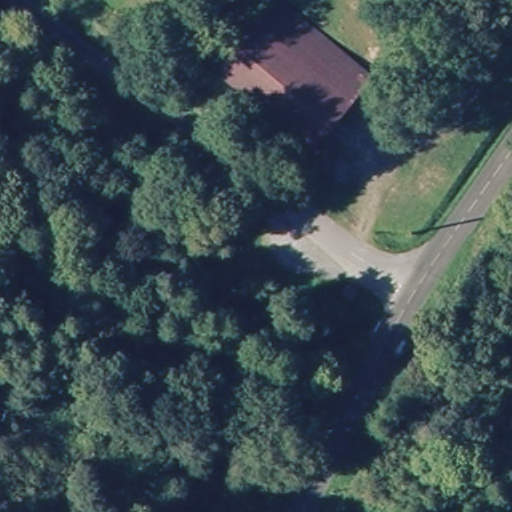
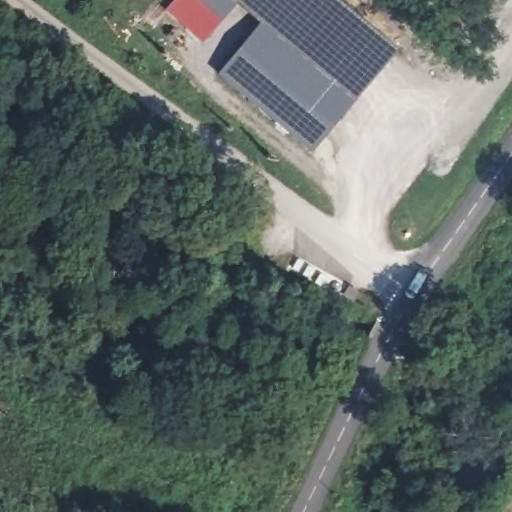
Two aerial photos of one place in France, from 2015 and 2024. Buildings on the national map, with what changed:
new [(174,0),(232,0),(236,3),(201,42),(165,10),(174,0)]
new [(396,51),(371,79),(278,1),(260,22),(235,0),(337,0),(396,51)]
unchanged [(371,79),(349,104),(257,25),(278,1),(371,79)]
unchanged [(308,153),(215,76),(257,25),(349,104),(308,153)]

